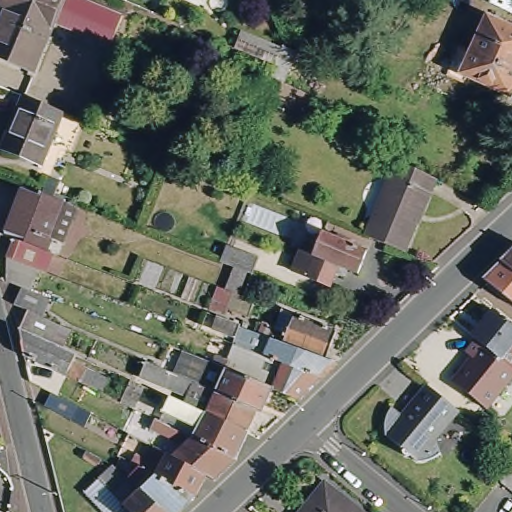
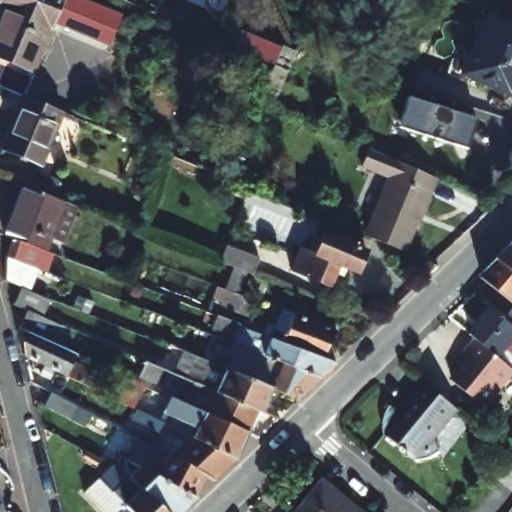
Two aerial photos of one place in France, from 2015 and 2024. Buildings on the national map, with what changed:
unchanged [(62,25),(39,72),(0,54),(0,52),(17,11),(10,8),(13,0),(85,0),(130,19),(117,49),(62,25)]
unchanged [(466,81),(455,76),(455,67),(459,57),(466,47),(478,52),(493,19),(512,27),(512,93),(469,75),(466,81)]
unchanged [(240,31),(280,50),(273,64),(233,46),(240,31)]
unchanged [(45,167),(6,152),(26,97),(65,113),(45,167)]
new [(466,149),(397,127),(407,97),(475,119),(466,149)]
unchanged [(401,251),(362,234),(395,161),(434,179),(401,251)]
unchanged [(125,387),(130,378),(144,385),(133,410),(25,356),(18,328),(27,311),(15,306),(21,287),(5,280),(6,255),(11,241),(12,237),(3,234),(13,207),(21,185),(43,193),(76,206),(67,227),(61,243),(48,238),(44,248),(53,252),(52,253),(51,257),(46,271),(37,267),(29,290),(50,298),(42,317),(60,325),(52,343),(75,353),(72,362),(125,387)]
unchanged [(357,276),(341,270),(335,275),(328,291),(290,275),(299,252),(314,257),(322,237),(366,253),(357,276)]
unchanged [(225,288),(233,265),(228,263),(220,260),(225,245),(257,257),(252,272),(242,295),(253,300),(251,307),(231,300),(225,311),(199,301),(206,281),(216,285),(225,288)]
new [(480,278),(512,250),(512,285),(498,295),(480,278)]
unchanged [(512,306),(498,295),(512,285),(512,306)]
unchanged [(483,308),(512,331),(512,375),(503,368),(465,337),(461,334),(483,308)]
unchanged [(335,362),(320,377),(233,342),(236,334),(202,322),(206,311),(240,323),(241,326),(258,332),(326,358),(335,362)]
unchanged [(258,332),(263,322),(285,331),(293,313),(336,330),(326,358),(258,332)]
unchanged [(192,327),(233,342),(320,377),(298,397),(273,387),(242,375),(211,362),(214,357),(226,361),(229,353),(189,338),(192,327)]
unchanged [(473,405),(442,379),(462,355),(455,350),(465,337),(503,368),(473,405)]
unchanged [(191,367),(180,362),(177,366),(162,360),(168,345),(183,351),(211,362),(242,375),(273,387),(263,410),(259,407),(228,395),(187,377),(191,367)]
unchanged [(228,395),(259,407),(248,431),(215,416),(194,407),(200,393),(185,387),(180,394),(139,377),(146,361),(152,363),(187,377),(228,395)]
unchanged [(446,405),(452,411),(429,440),(441,449),(436,453),(433,457),(428,460),(425,462),(421,463),(419,463),(416,462),(412,461),(380,435),(377,432),(376,428),(376,426),(377,421),(378,418),(380,414),(385,406),(397,415),(421,385),(446,405)]
unchanged [(77,406),(70,420),(45,407),(52,393),(77,406)]
unchanged [(215,416),(248,431),(235,456),(193,436),(197,427),(165,412),(171,397),(194,407),(215,416)]
unchanged [(237,457),(215,479),(205,474),(168,455),(180,443),(149,427),(153,420),(156,418),(193,436),(235,456),(237,457)]
unchanged [(205,474),(197,493),(193,497),(167,483),(155,477),(166,453),(168,455),(205,474)]
unchanged [(193,497),(177,512),(167,512),(129,477),(139,468),(130,463),(130,462),(135,455),(145,460),(141,469),(155,477),(167,483),(193,497)]
unchanged [(497,481),(512,464),(512,494),(508,491),(497,481)]
unchanged [(86,492),(116,466),(129,477),(167,512),(104,512),(86,492)]
unchanged [(324,484),(359,512),(302,512),(324,484)]

